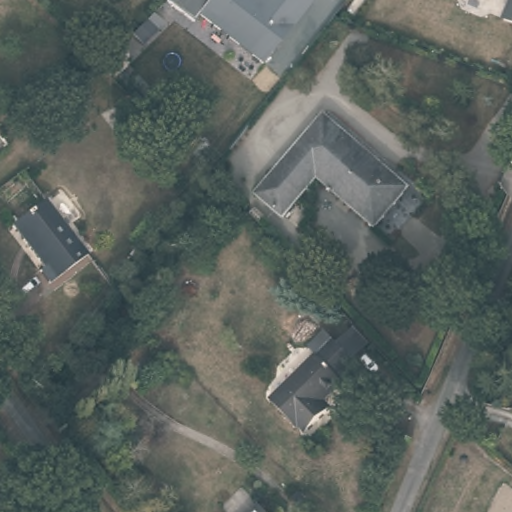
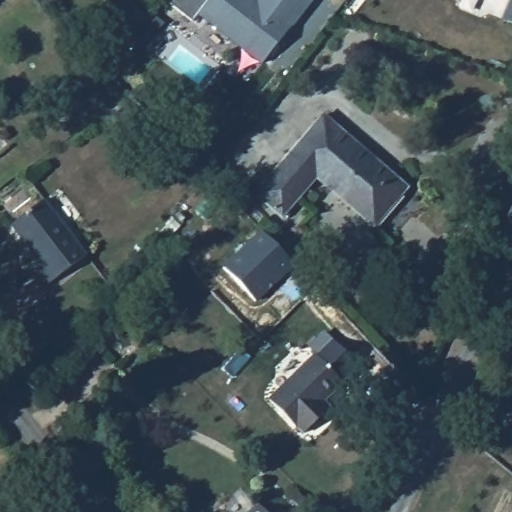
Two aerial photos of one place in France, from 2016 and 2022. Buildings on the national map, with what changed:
unchanged [(200,15),(192,23),(166,3),(168,0),(313,0),(263,65),(200,15)]
unchanged [(510,0),(512,0),(512,24),(501,20),(510,0)]
unchanged [(317,187),(281,224),(253,197),(322,125),(406,201),(373,237),(317,187)]
unchanged [(81,257),(47,285),(37,273),(40,270),(8,227),(39,203),(81,257)]
new [(263,231),(295,265),(256,302),(224,268),(263,231)]
unchanged [(340,389),(319,408),(326,416),(298,442),(290,433),(287,436),(260,407),(312,359),(308,354),(324,339),(333,349),(352,332),(370,351),(351,368),(356,373),(340,389)]
unchanged [(252,510),(254,512),(250,512),(252,510)]

